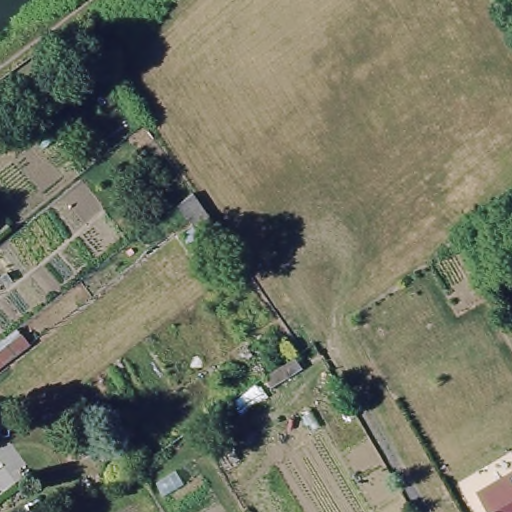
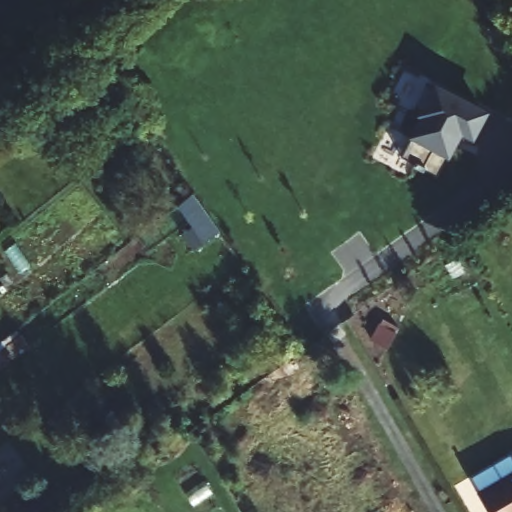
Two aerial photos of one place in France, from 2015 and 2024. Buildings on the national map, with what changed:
new [(473,140),(461,131),(438,174),(399,154),(436,84),(488,111),(473,140)]
unchanged [(191,191),(194,195),(218,231),(198,245),(174,209),(191,191)]
unchanged [(28,345),(0,368),(0,341),(15,328),(28,345)]
unchanged [(512,477),(512,512),(486,512),(479,486),(512,477)]

